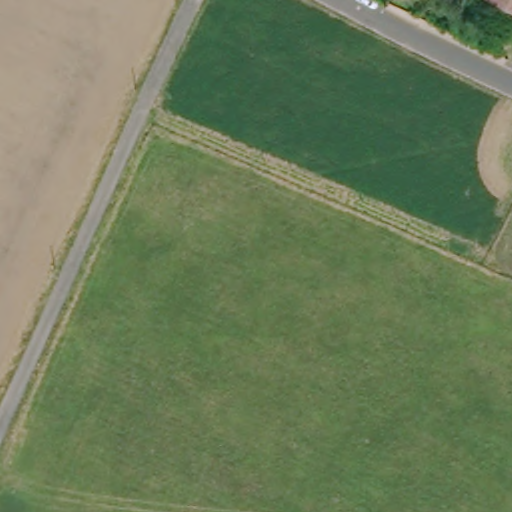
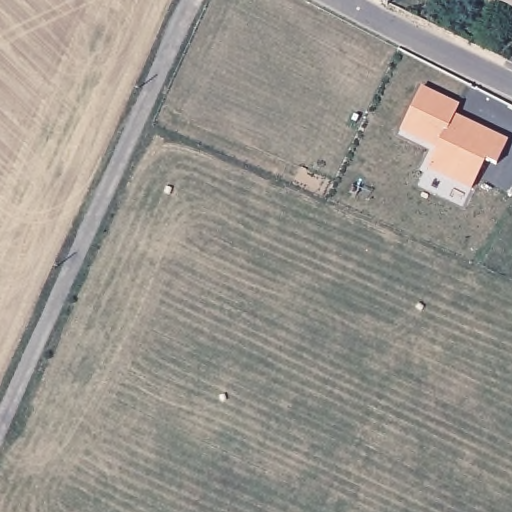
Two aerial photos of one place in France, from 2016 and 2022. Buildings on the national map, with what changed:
unchanged [(512,0),(512,12),(487,0),(512,0)]
new [(426,86),(463,105),(455,121),(470,128),(473,121),(512,140),(502,163),(491,157),(477,186),(432,165),(442,145),(406,128),(426,86)]

